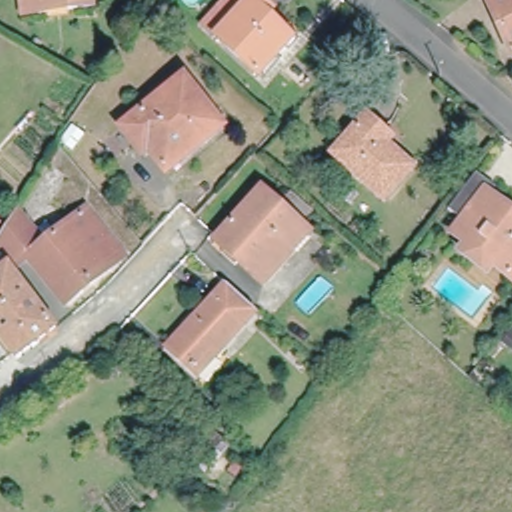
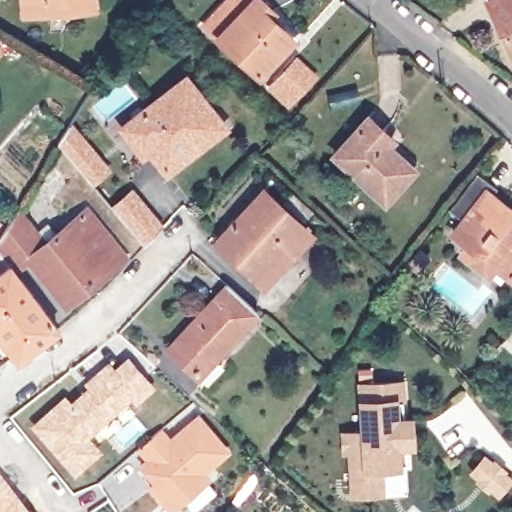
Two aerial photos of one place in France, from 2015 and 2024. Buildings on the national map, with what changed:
unchanged [(22,9),(22,0),(91,0),(91,5),(66,7),(46,8),(22,9)]
unchanged [(260,76),(207,28),(234,0),(251,0),(254,2),(255,0),(261,0),(275,12),(270,17),(293,39),(260,76)]
unchanged [(509,61),(484,1),(486,0),(512,0),(512,60),(509,61)]
unchanged [(162,174),(146,152),(140,157),(118,129),(182,80),(220,129),(162,174)]
unchanged [(330,156),(365,119),(388,143),(384,147),(409,171),(380,202),(330,156)]
new [(62,145),(58,148),(55,144),(61,134),(74,123),(112,168),(94,184),(62,145)]
unchanged [(484,260),(470,248),(475,242),(461,231),(473,216),(457,203),(482,171),(497,184),(492,189),(512,205),(512,257),(509,260),(505,257),(495,270),(484,260)]
new [(165,224),(142,243),(109,204),(132,185),(165,224)]
unchanged [(256,280),(237,263),(217,245),(221,240),(261,195),(306,236),(290,253),(262,285),(256,280)]
unchanged [(67,301),(31,257),(17,268),(12,262),(0,246),(0,237),(20,206),(46,239),(89,206),(127,253),(67,301)]
unchanged [(512,257),(512,263),(509,260),(512,257)]
unchanged [(0,330),(0,272),(12,262),(17,268),(59,325),(18,355),(0,330)]
unchanged [(195,373),(171,351),(228,287),(257,314),(221,354),(199,377),(195,373)]
new [(138,403),(132,397),(90,436),(102,450),(76,475),(30,425),(66,393),(70,399),(87,385),(83,381),(107,360),(114,366),(127,354),(156,385),(138,403)]
new [(351,497),(347,453),(341,452),(341,430),(359,428),(357,399),(357,381),(403,377),(406,398),(397,399),(398,414),(412,413),(415,446),(400,448),(401,466),(382,467),(382,493),(351,497)]
new [(232,450),(206,471),(211,478),(172,512),(170,512),(147,486),(152,480),(140,464),(145,459),(136,448),(162,425),(170,436),(200,411),(232,450)]
new [(0,512),(0,472),(31,512),(0,512)]

